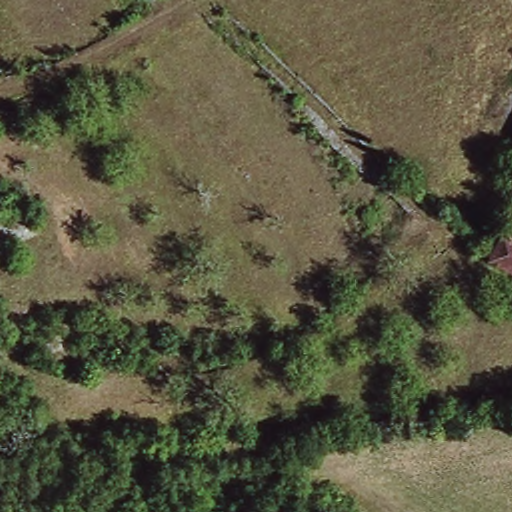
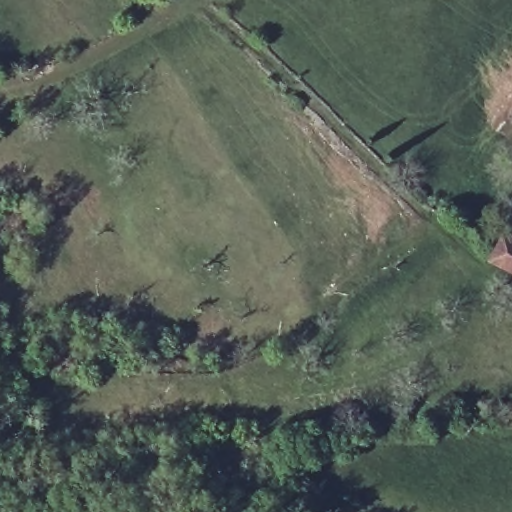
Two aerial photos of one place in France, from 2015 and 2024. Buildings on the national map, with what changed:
unchanged [(488,256),(505,228),(512,232),(512,269),(488,256)]

